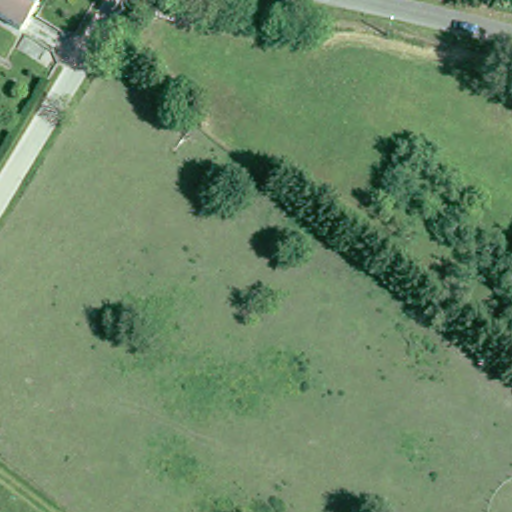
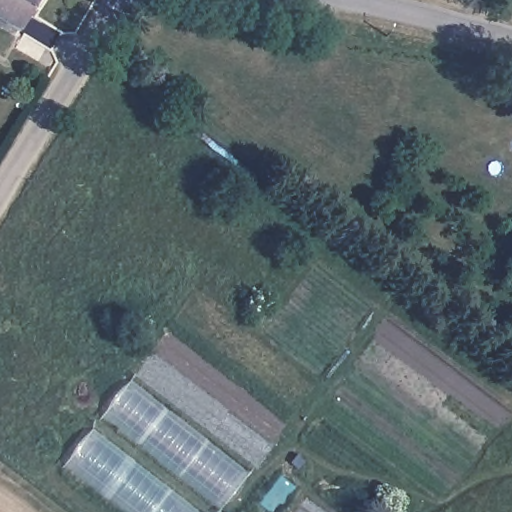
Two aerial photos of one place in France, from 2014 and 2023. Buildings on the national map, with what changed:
unchanged [(0,22),(0,0),(37,0),(15,32),(0,22)]
new [(220,512),(123,512),(64,466),(132,380),(251,473),(220,512)]

